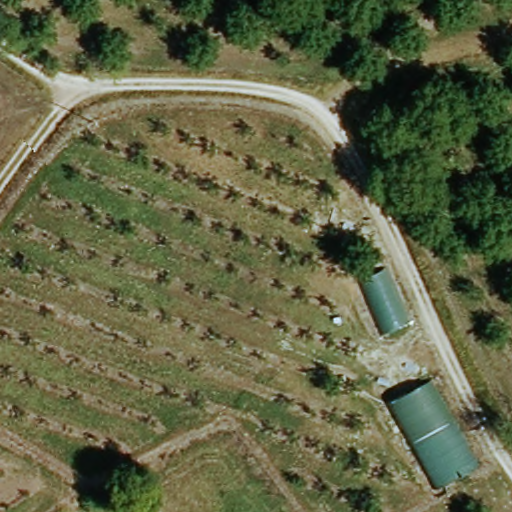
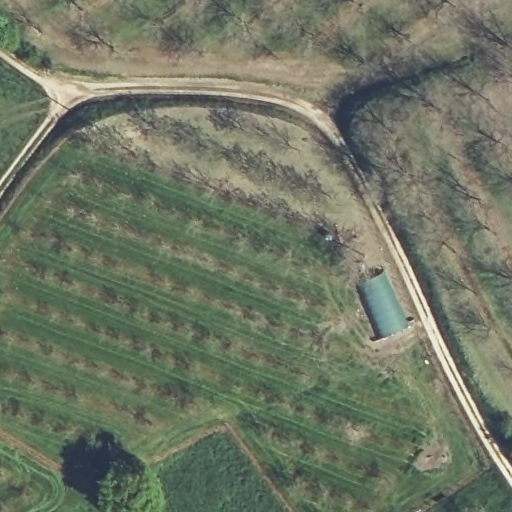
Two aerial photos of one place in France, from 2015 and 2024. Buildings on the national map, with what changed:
new [(379,340),(356,285),(383,274),(405,329),(379,340)]
demolished [(388,406),(428,385),(476,472),(436,492),(388,406)]

